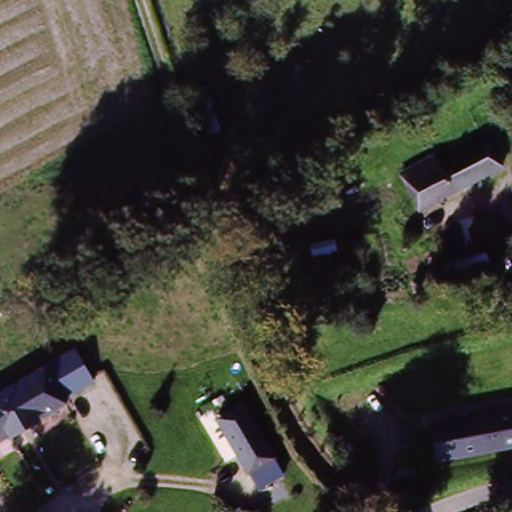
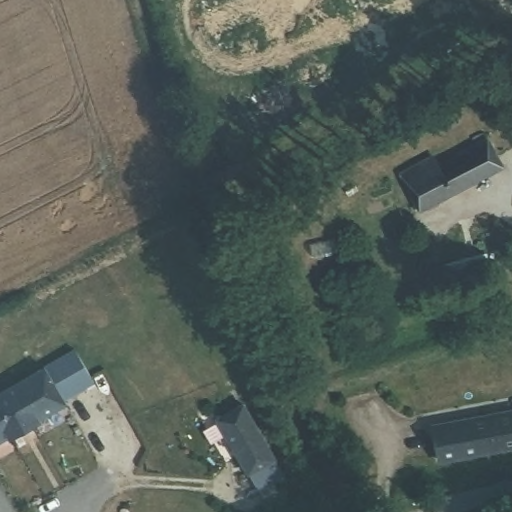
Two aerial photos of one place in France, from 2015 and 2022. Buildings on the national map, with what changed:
unchanged [(439,168),(489,142),(503,169),(420,211),(402,175),(434,159),(439,168)]
unchanged [(71,351),(90,383),(60,401),(40,369),(71,351)]
unchanged [(0,392),(40,369),(60,401),(62,405),(0,441),(0,392)]
unchanged [(259,489),(222,426),(248,411),(284,475),(294,492),(268,506),(259,489)]
unchanged [(512,413),(512,450),(441,462),(434,428),(512,413)]
unchanged [(441,462),(412,467),(405,433),(434,428),(441,462)]

